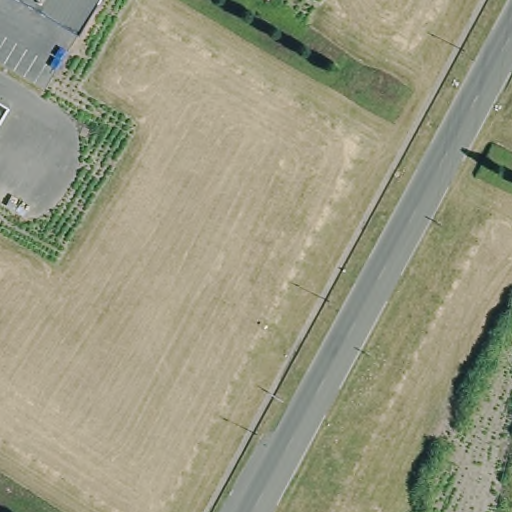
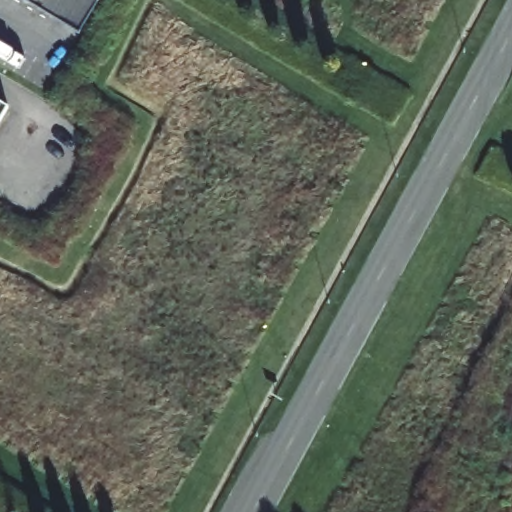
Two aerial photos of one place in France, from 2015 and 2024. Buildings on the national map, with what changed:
unchanged [(82,32),(27,0),(101,0),(82,32)]
unchanged [(0,123),(0,106),(7,110),(0,123)]

